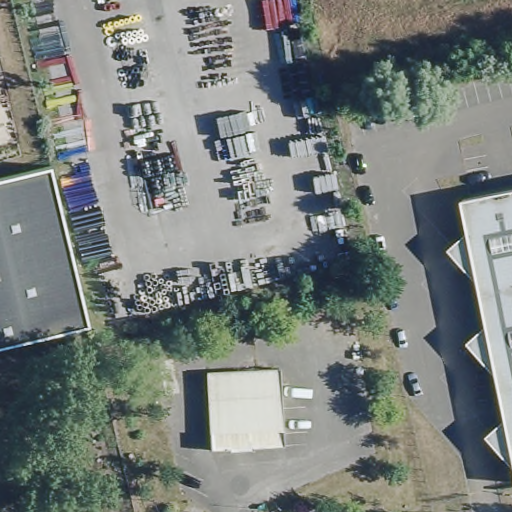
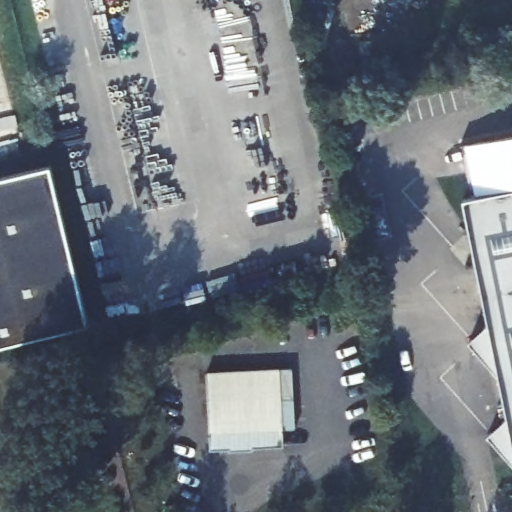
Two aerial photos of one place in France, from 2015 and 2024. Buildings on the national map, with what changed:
new [(464,143),(512,134),(512,186),(476,194),(464,143)]
unchanged [(49,166),(85,332),(0,352),(0,178),(49,166)]
unchanged [(505,415),(498,370),(470,337),(488,322),(480,277),(452,246),(470,231),(464,196),(512,186),(512,458),(488,432),(505,415)]
unchanged [(202,369),(275,365),(279,430),(206,435),(202,369)]
unchanged [(280,443),(251,445),(251,449),(225,450),(225,446),(207,446),(206,435),(279,430),(280,443)]

